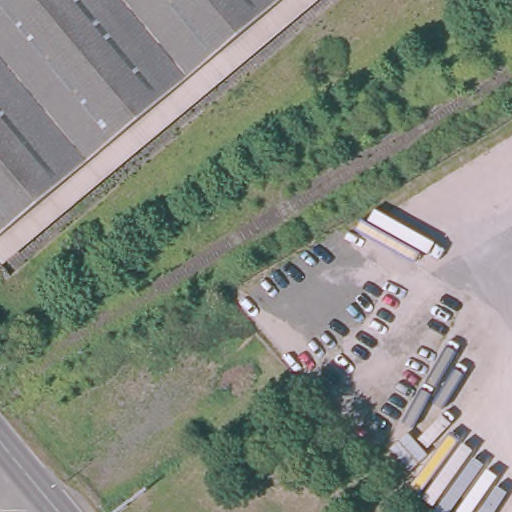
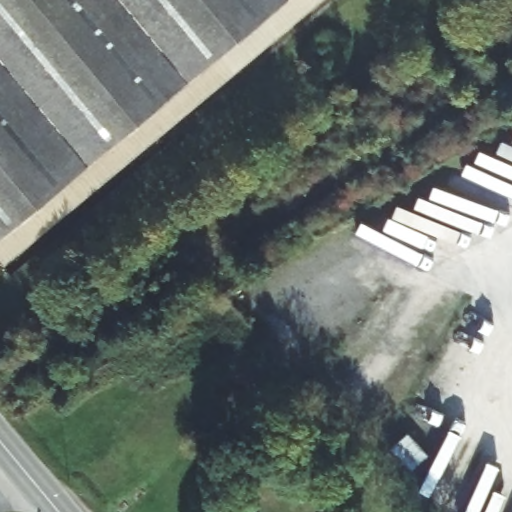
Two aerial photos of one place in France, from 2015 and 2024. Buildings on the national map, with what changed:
unchanged [(0,243),(0,0),(290,0),(0,243)]
unchanged [(0,265),(0,243),(290,0),(317,0),(0,266),(0,265)]

